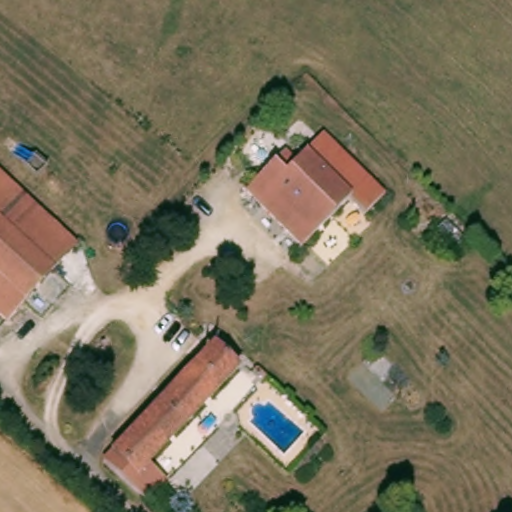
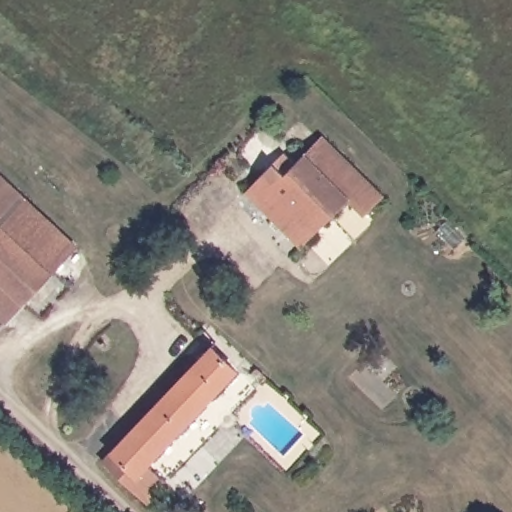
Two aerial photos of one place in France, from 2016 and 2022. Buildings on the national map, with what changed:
unchanged [(281,147),(295,161),(322,132),(382,194),(363,212),(347,197),(303,242),(244,186),(281,147)]
unchanged [(0,318),(0,177),(76,249),(6,323),(0,318)]
unchanged [(116,481),(96,463),(208,345),(231,370),(144,465),(160,479),(139,503),(116,481)]

